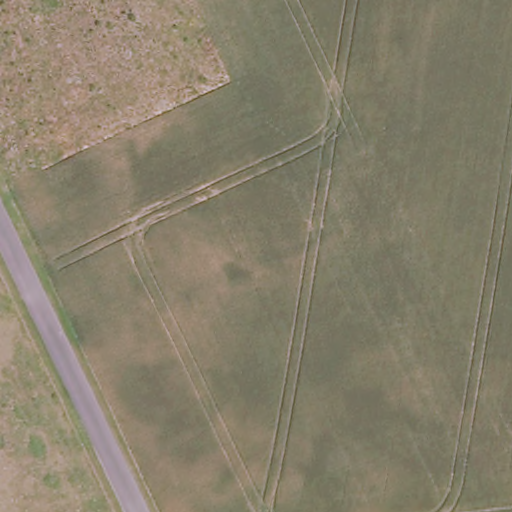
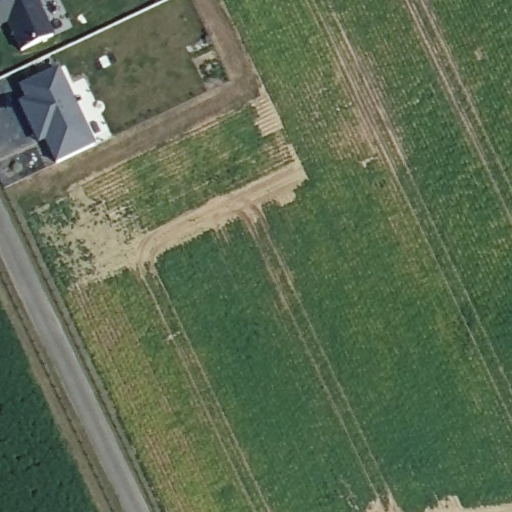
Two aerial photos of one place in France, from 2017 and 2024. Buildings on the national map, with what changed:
new [(23,51),(11,27),(15,26),(13,20),(0,26),(0,0),(37,0),(54,36),(23,51)]
new [(55,165),(44,142),(38,145),(17,103),(24,100),(18,88),(58,70),(94,146),(55,165)]

